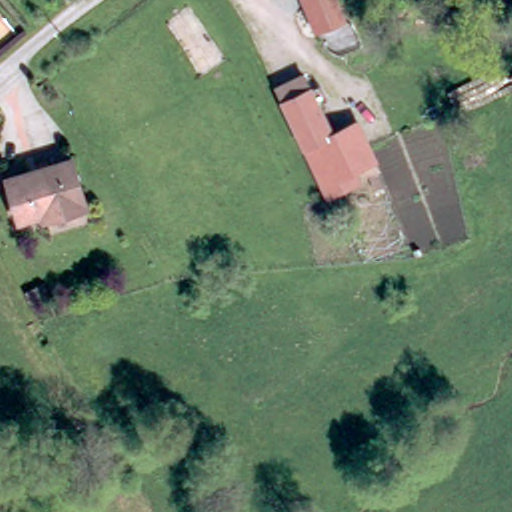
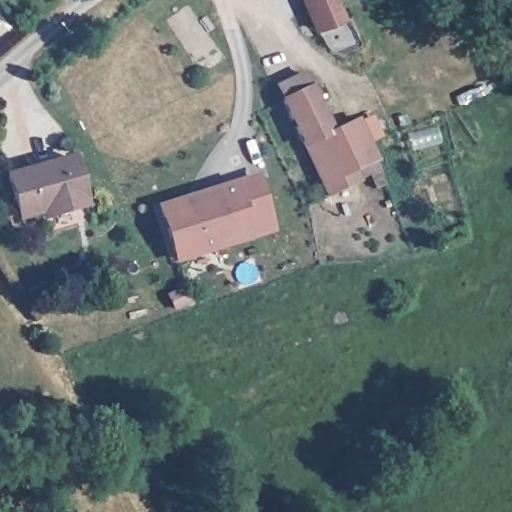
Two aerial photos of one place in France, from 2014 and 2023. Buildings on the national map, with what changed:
unchanged [(334,0),(343,24),(315,35),(302,0),(334,0)]
demolished [(184,90),(157,43),(192,22),(219,69),(184,90)]
unchanged [(279,86),(307,74),(319,106),(290,117),(279,86)]
unchanged [(319,106),(335,148),(307,161),(290,117),(319,106)]
unchanged [(359,117),(380,160),(357,172),(360,184),(325,201),(307,161),(335,148),(329,132),(359,117)]
unchanged [(19,217),(10,177),(78,160),(89,210),(64,216),(62,207),(19,217)]
new [(276,235),(255,240),(175,263),(156,206),(237,182),(258,174),(276,235)]

